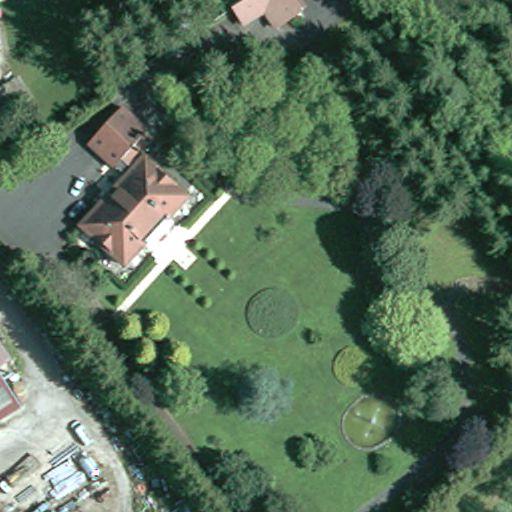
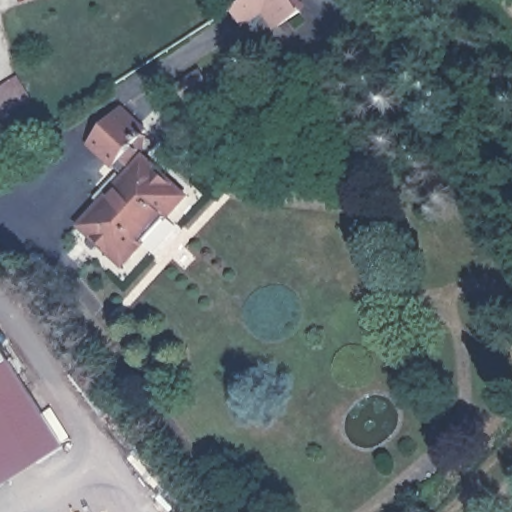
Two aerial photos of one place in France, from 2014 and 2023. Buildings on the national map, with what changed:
unchanged [(282,26),(272,13),(251,25),(240,9),(253,0),(298,0),(306,11),(282,26)]
unchanged [(126,108),(153,131),(127,159),(138,169),(150,158),(192,197),(171,219),(167,215),(143,241),(148,245),(128,266),(86,227),(105,207),(110,210),(133,184),(129,180),(133,178),(120,166),(118,169),(93,144),(126,108)]
unchanged [(0,366),(0,338),(13,359),(0,366)]
new [(0,493),(0,366),(13,359),(68,449),(0,493)]

